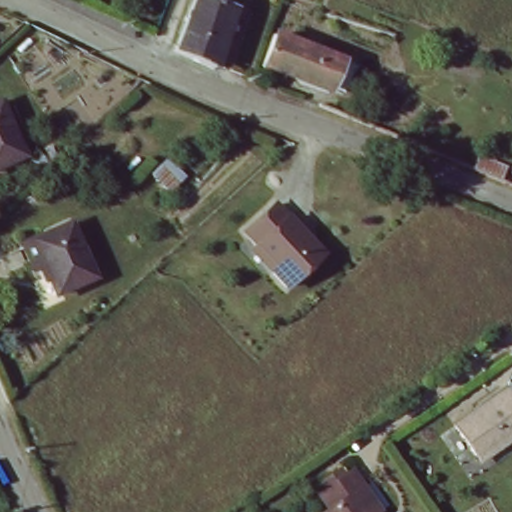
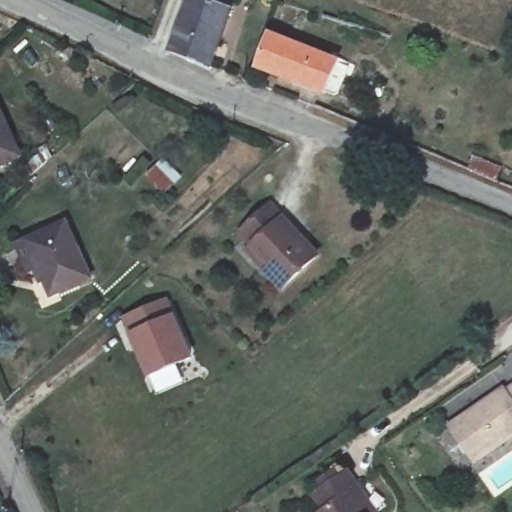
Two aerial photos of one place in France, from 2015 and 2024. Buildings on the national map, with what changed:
unchanged [(233,12),(210,70),(171,53),(192,0),(204,0),(233,12)]
unchanged [(323,92),(305,85),(258,68),(270,38),(316,55),(335,62),(323,92)]
unchanged [(0,160),(0,118),(16,154),(0,160)]
unchanged [(260,248),(251,238),(281,211),(323,259),(287,291),(273,274),(254,253),(260,248)]
unchanged [(53,296),(29,241),(65,225),(90,279),(53,296)]
new [(165,301),(190,357),(150,375),(124,319),(165,301)]
unchanged [(452,428),(497,396),(502,393),(505,396),(512,391),(512,439),(503,446),(476,464),(473,459),(452,428)]
unchanged [(317,493),(312,486),(330,473),(335,481),(343,475),(355,491),(370,512),(320,512),(310,498),(317,493)]

